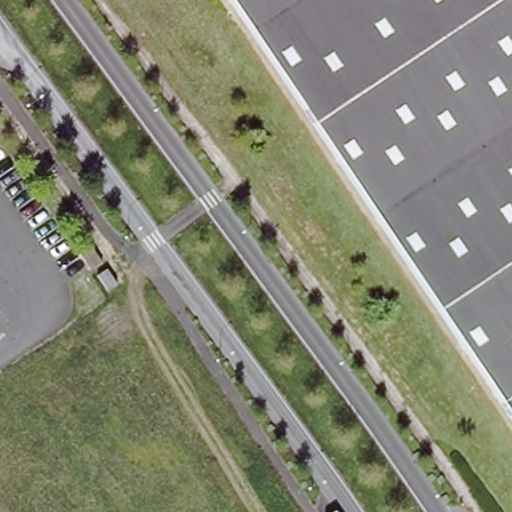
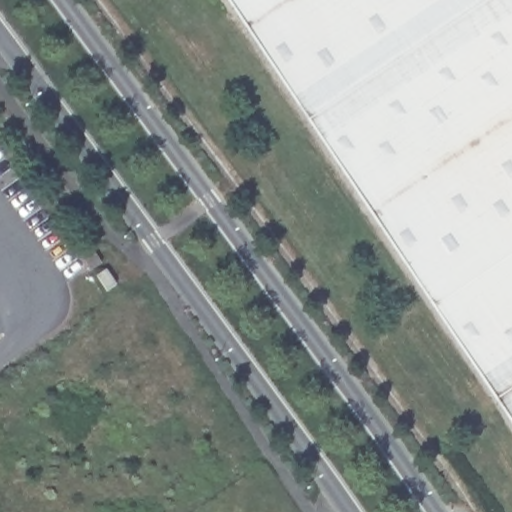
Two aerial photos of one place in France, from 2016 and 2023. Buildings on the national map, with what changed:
unchanged [(223,0),(512,0),(512,431),(223,0)]
unchanged [(92,268),(81,251),(90,244),(102,261),(92,268)]
unchanged [(117,282),(109,289),(98,273),(107,267),(117,282)]

